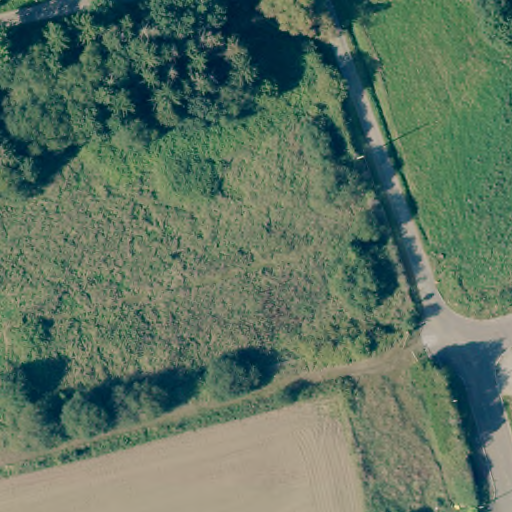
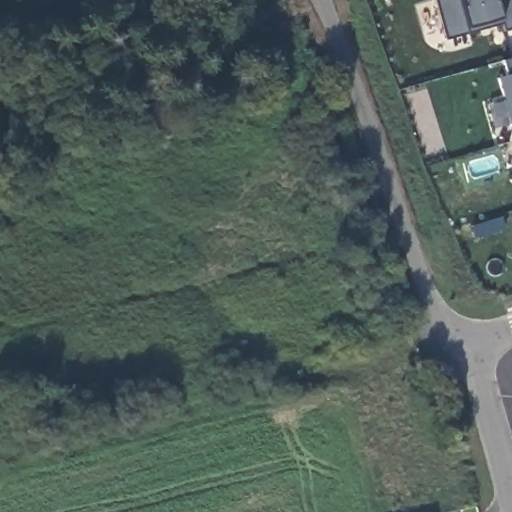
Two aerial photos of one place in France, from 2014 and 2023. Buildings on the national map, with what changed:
new [(501,26),(445,41),(435,1),(438,0),(495,0),(497,6),(512,1),(512,29),(503,31),(501,26)]
new [(497,78),(506,76),(502,64),(512,61),(512,125),(510,126),(497,78)]

